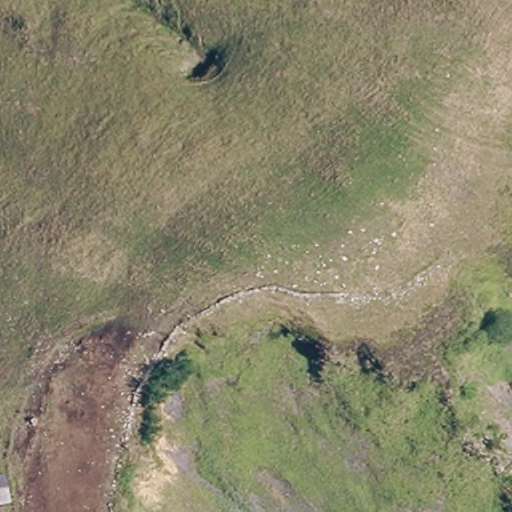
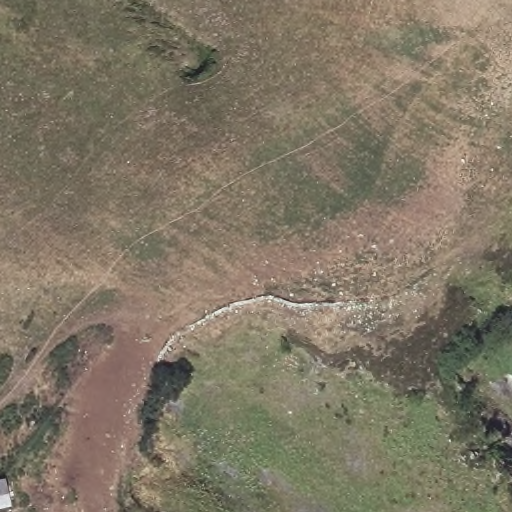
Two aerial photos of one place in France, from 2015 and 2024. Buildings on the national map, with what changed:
unchanged [(0,508),(0,479),(6,478),(13,506),(0,508)]

